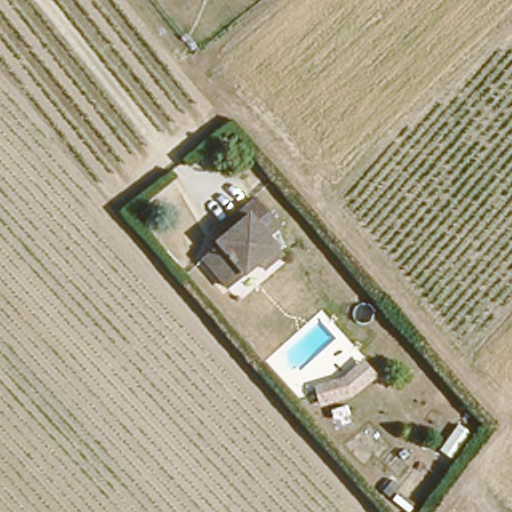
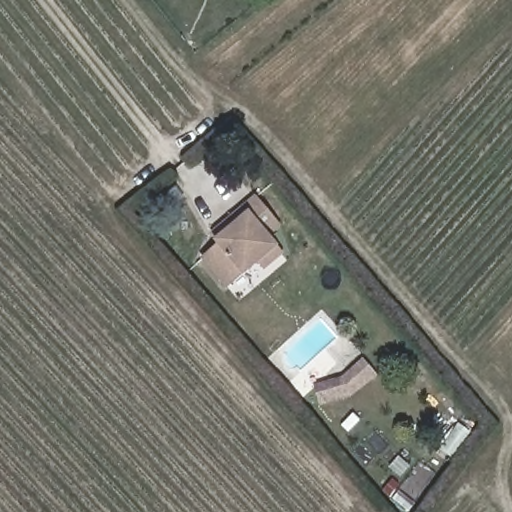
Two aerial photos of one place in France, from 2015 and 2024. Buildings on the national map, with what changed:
unchanged [(278,217),(264,229),(281,249),(265,262),(257,254),(228,279),(205,252),(221,238),(217,234),(213,229),(246,201),(257,192),(278,217)]
unchanged [(353,381),(357,396),(328,406),(324,390),(353,381)]

